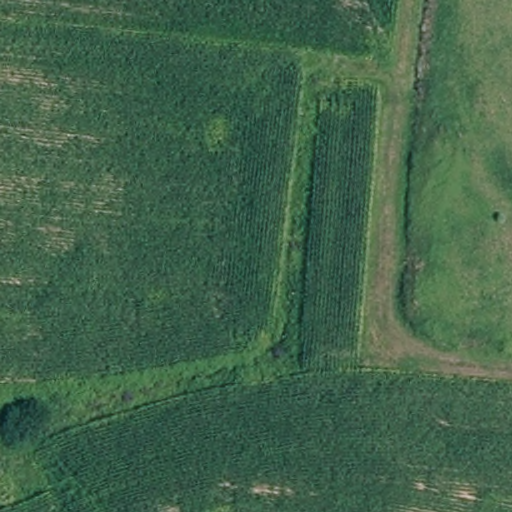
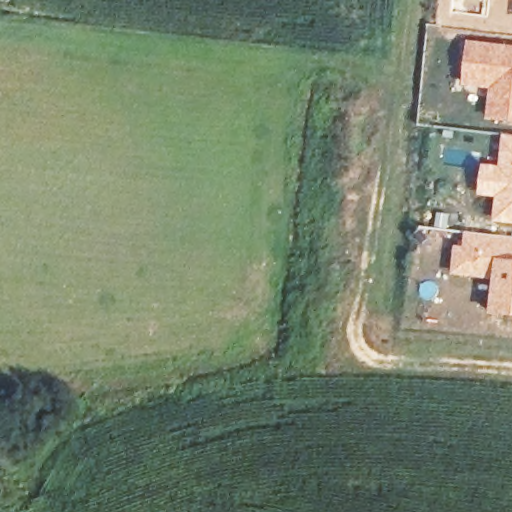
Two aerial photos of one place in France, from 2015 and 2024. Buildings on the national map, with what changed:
new [(468,40),(512,46),(512,122),(485,119),(488,90),(460,85),(468,40)]
new [(481,164),(498,165),(501,134),(512,135),(512,225),(491,222),(495,199),(477,196),(481,164)]
new [(452,246),(462,246),(464,232),(512,238),(512,316),(488,313),(492,281),(450,275),(452,246)]

